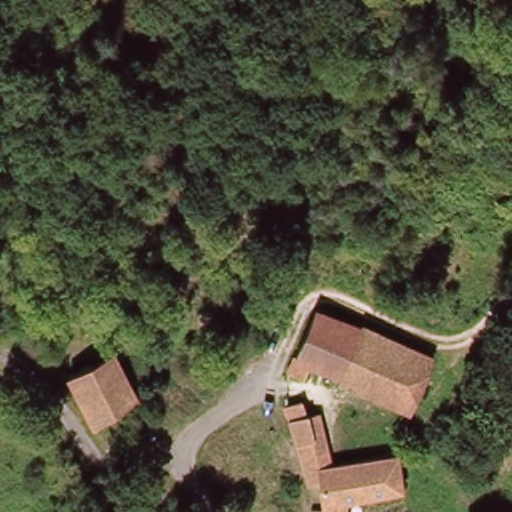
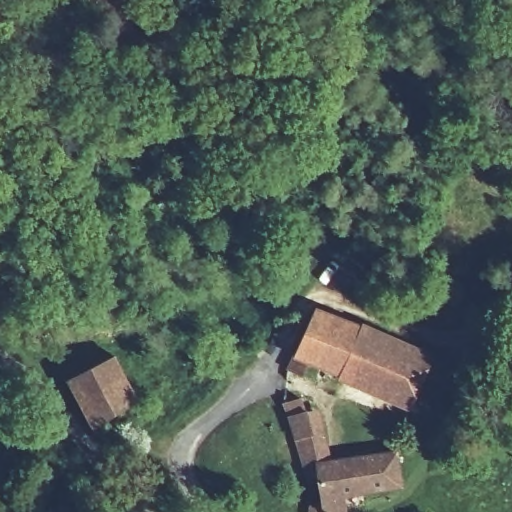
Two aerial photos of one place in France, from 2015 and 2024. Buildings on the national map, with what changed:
unchanged [(119,334),(46,349),(39,313),(112,300),(119,334)]
unchanged [(330,316),(360,327),(432,356),(415,408),(376,391),(314,367),(309,381),(296,376),(320,314),(330,316)]
unchanged [(156,407),(112,424),(97,402),(91,378),(135,362),(156,407)]
unchanged [(345,490),(348,512),(309,512),(307,504),(322,501),(315,475),(307,476),(285,405),(299,404),(303,411),(315,409),(327,463),(395,448),(400,479),(364,486),(345,490)]

